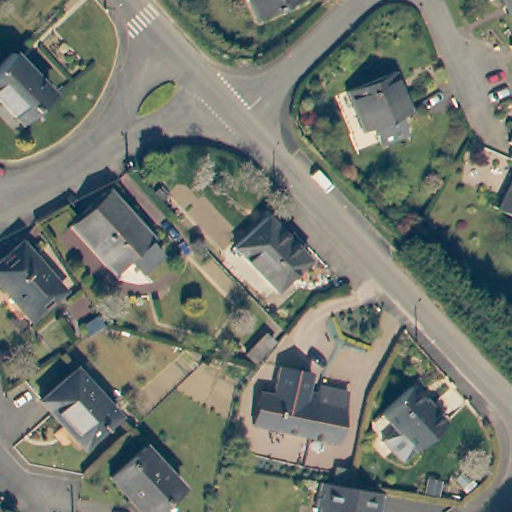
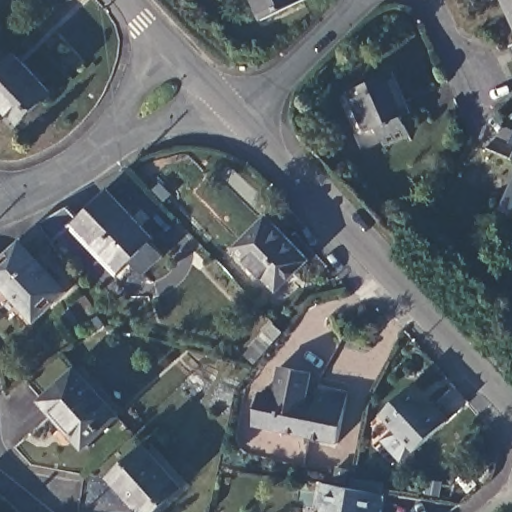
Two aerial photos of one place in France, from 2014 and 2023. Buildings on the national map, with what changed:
unchanged [(262,25),(251,0),(305,0),(307,4),(262,25)]
unchanged [(512,0),(512,13),(506,0),(512,0)]
unchanged [(20,54),(57,94),(26,123),(0,96),(0,73),(20,54)]
unchanged [(403,117),(411,135),(385,146),(377,128),(368,132),(350,91),(395,71),(413,113),(403,117)]
unchanged [(512,127),(512,144),(509,143),(502,140),(509,126),(512,127)]
unchanged [(509,143),(512,144),(512,161),(503,156),(509,143)]
unchanged [(512,169),(512,216),(494,208),(512,169)]
unchanged [(131,263),(120,273),(74,224),(106,194),(152,243),(164,256),(143,276),(131,263)]
unchanged [(235,249),(267,217),(310,261),(277,293),(235,249)]
unchanged [(0,284),(0,263),(21,244),(65,292),(33,321),(0,284)]
unchanged [(254,365),(245,357),(260,340),(269,347),(254,365)]
unchanged [(311,394),(321,396),(322,389),(353,396),(342,443),(258,425),(264,394),(284,398),(285,391),(280,390),(284,368),(315,374),(311,394)]
unchanged [(66,426),(69,423),(46,398),(75,372),(117,419),(86,447),(66,426)]
unchanged [(381,416),(410,389),(430,410),(432,408),(446,424),(415,452),(381,416)]
unchanged [(111,479),(145,448),(181,489),(155,512),(141,512),(111,479)]
unchanged [(320,484),(322,484),(385,495),(383,512),(319,512),(319,510),(315,510),(320,484)]

